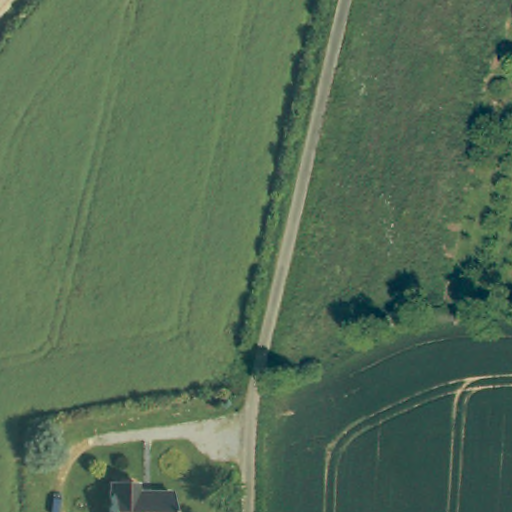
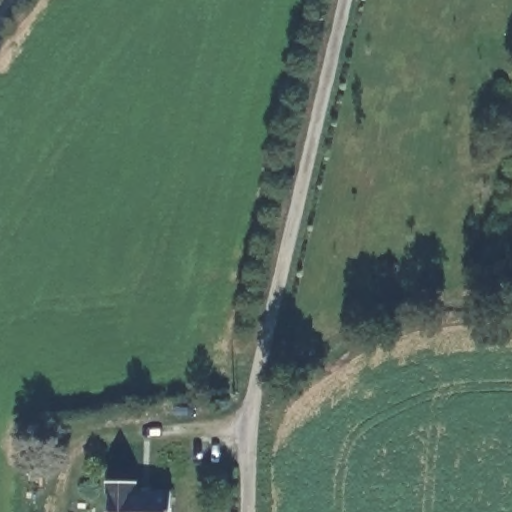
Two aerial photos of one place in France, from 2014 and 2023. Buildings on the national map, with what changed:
unchanged [(176,495),(176,512),(116,512),(115,484),(140,485),(140,495),(176,495)]

